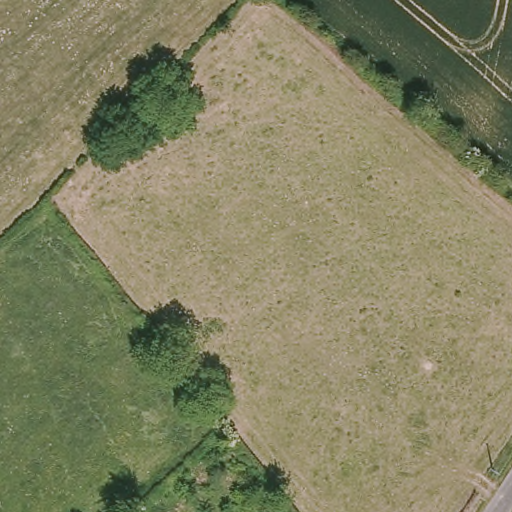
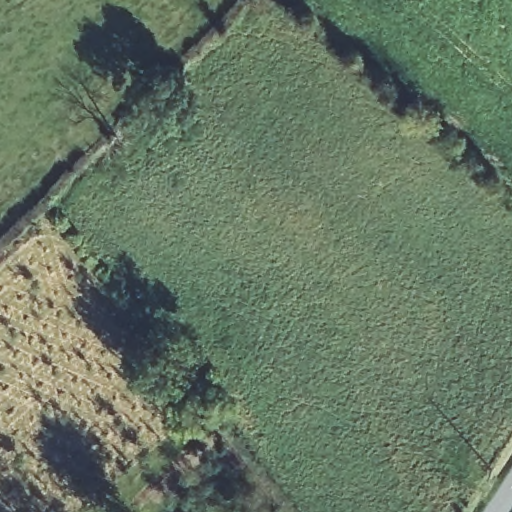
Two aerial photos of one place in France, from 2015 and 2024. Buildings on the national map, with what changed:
[]

